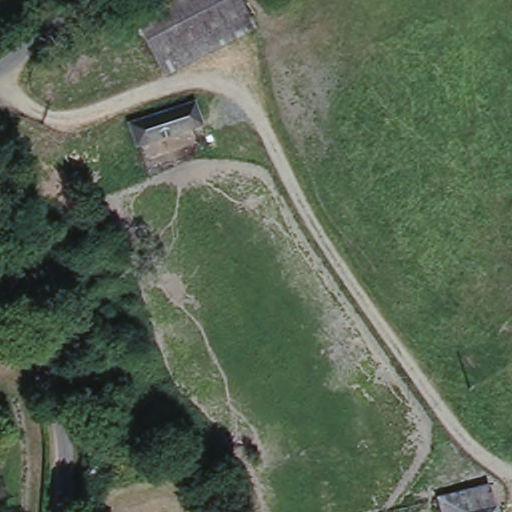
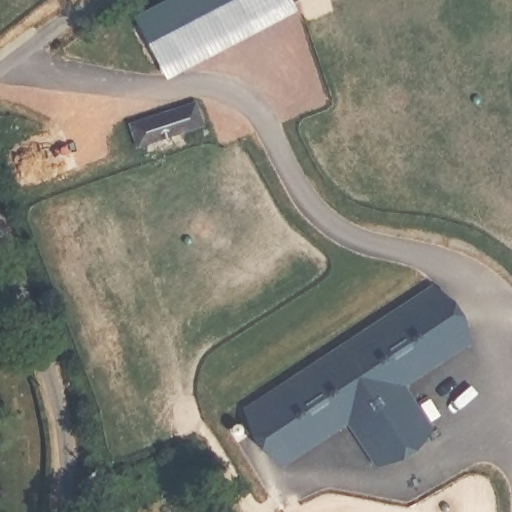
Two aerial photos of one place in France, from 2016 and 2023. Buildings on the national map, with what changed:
unchanged [(167,0),(243,0),(256,33),(153,72),(134,13),(167,0)]
unchanged [(191,103),(197,124),(144,143),(137,119),(191,103)]
new [(429,285),(466,346),(408,386),(438,429),(390,466),(357,418),(288,466),(250,411),(429,285)]
unchanged [(499,512),(444,512),(439,491),(491,477),(499,512)]

